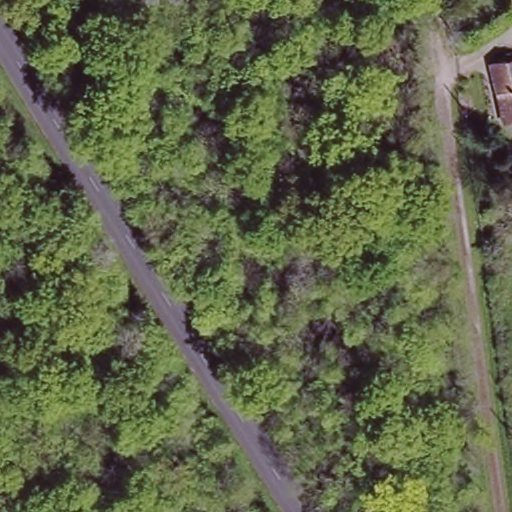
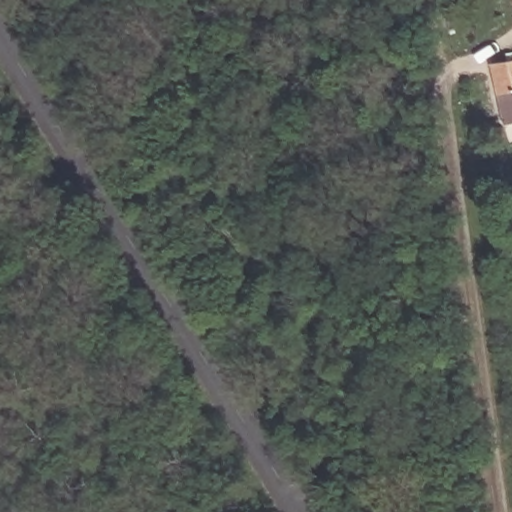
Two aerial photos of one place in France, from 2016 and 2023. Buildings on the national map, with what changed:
unchanged [(511,129),(489,66),(512,58),(512,129),(511,129)]

